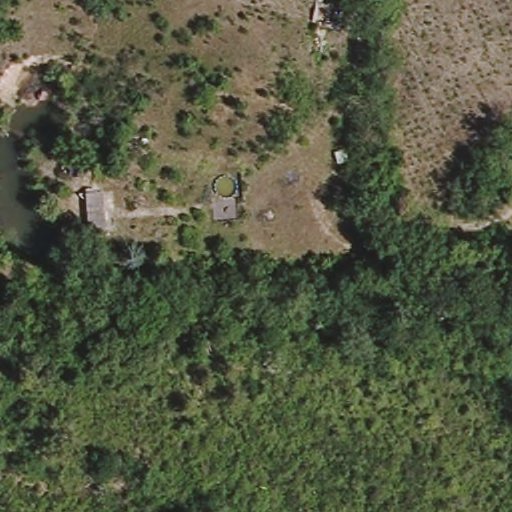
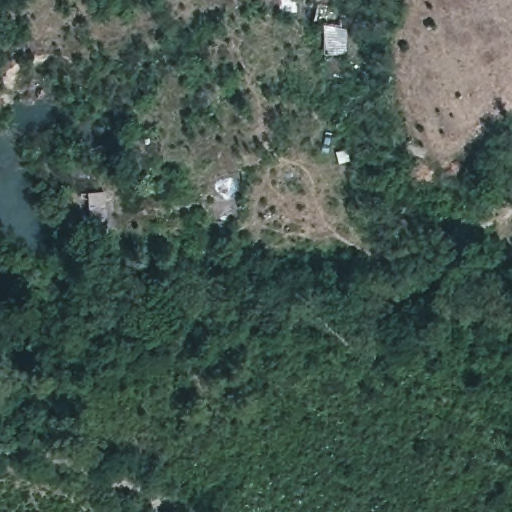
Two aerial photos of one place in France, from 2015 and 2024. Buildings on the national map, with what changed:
unchanged [(320,35),(325,9),(343,16),(340,37),(320,35)]
unchanged [(87,235),(86,197),(103,197),(107,234),(87,235)]

